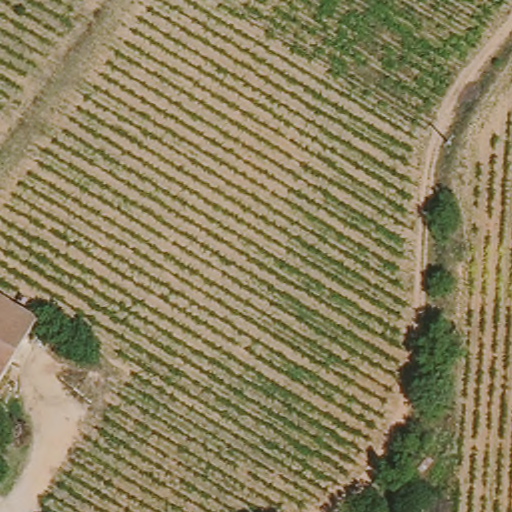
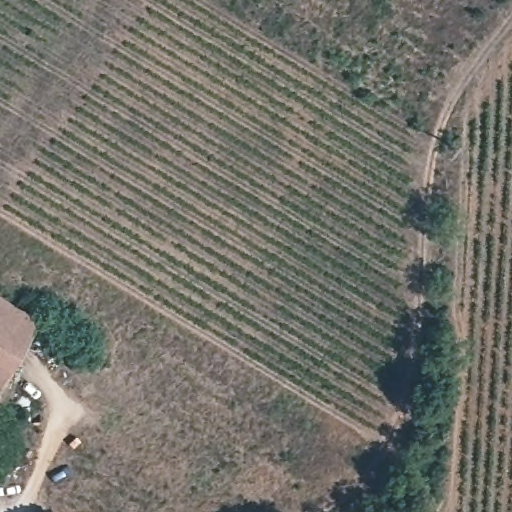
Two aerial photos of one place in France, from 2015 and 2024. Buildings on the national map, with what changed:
unchanged [(0,384),(0,304),(38,329),(0,384)]

